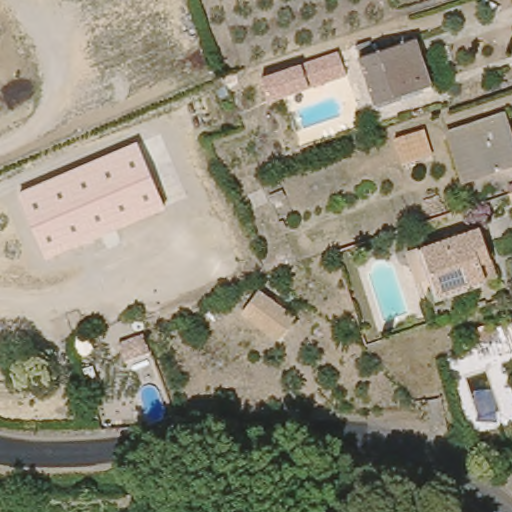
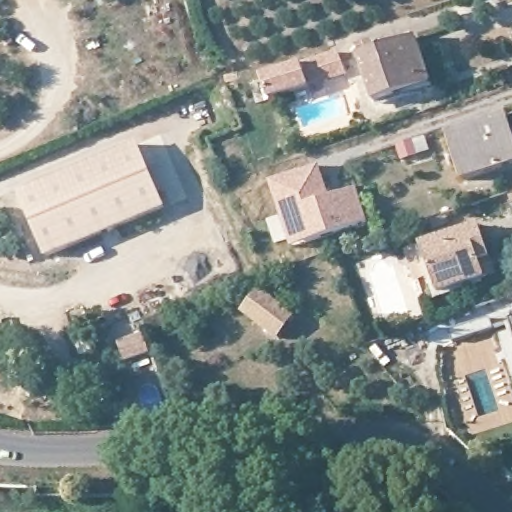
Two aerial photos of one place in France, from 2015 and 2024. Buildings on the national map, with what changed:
unchanged [(428,87),(372,103),(358,56),(414,40),(428,87)]
unchanged [(301,64),(338,52),(346,75),(310,87),(270,101),(262,78),(301,64)]
unchanged [(462,175),(447,127),(503,109),(512,137),(512,159),(462,175)]
unchanged [(429,145),(400,154),(394,133),(423,124),(429,145)]
unchanged [(137,142),(165,210),(46,258),(19,192),(137,142)]
new [(331,197),(357,188),(369,224),(294,248),(269,182),(318,166),(331,197)]
unchanged [(424,247),(439,242),(494,224),(509,272),(454,288),(438,293),(424,247)]
unchanged [(291,317),(277,337),(241,312),(255,292),(291,317)]
unchanged [(455,342),(451,332),(493,317),(496,327),(455,342)]
unchanged [(510,333),(507,323),(512,322),(512,342),(510,333)]
demolished [(468,347),(465,337),(507,323),(510,333),(468,347)]
unchanged [(145,332),(152,351),(128,361),(121,342),(145,332)]
new [(512,464),(512,477),(506,470),(512,464)]
unchanged [(471,512),(466,512),(468,510),(471,512)]

